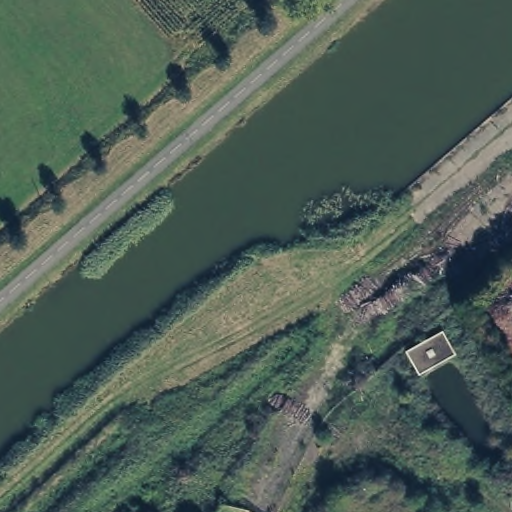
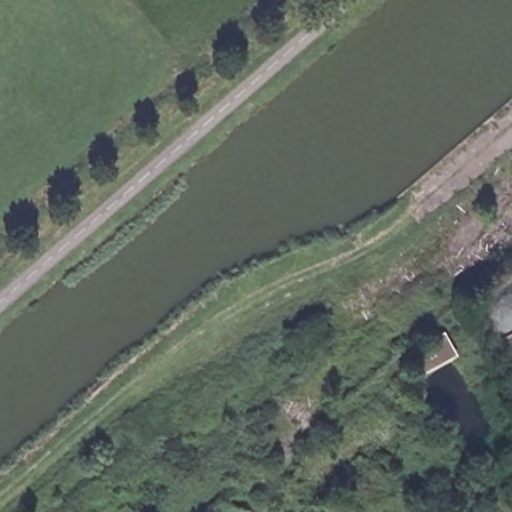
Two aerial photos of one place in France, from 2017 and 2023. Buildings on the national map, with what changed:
unchanged [(409,353),(442,334),(453,354),(420,372),(409,353)]

